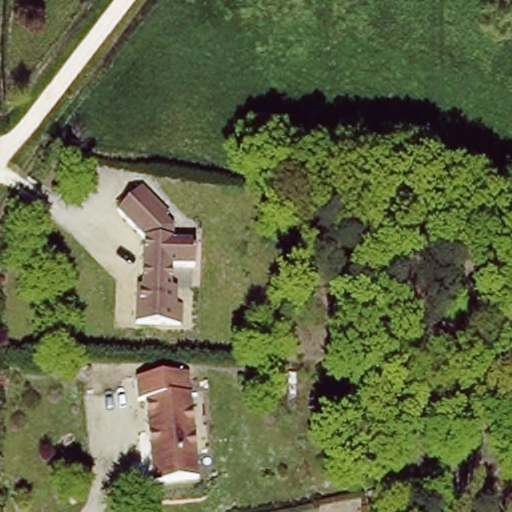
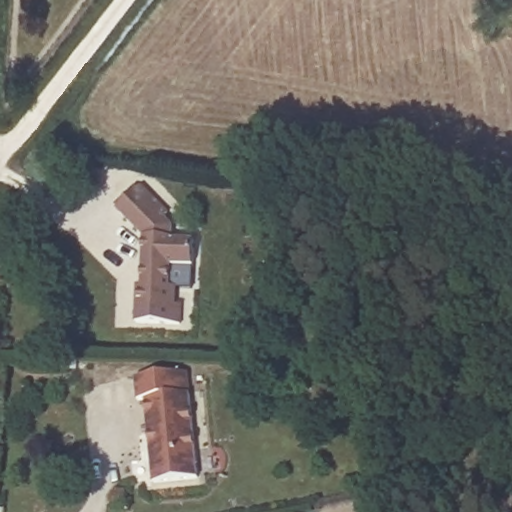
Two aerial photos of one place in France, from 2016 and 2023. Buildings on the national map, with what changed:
unchanged [(185,321),(177,321),(137,320),(138,280),(145,280),(146,231),(119,205),(145,179),(175,208),(168,215),(175,221),(174,235),(192,235),(192,262),(174,262),(173,287),(178,287),(177,299),(186,299),(185,321)]
unchanged [(190,373),(192,393),(200,475),(155,477),(148,398),(144,400),(143,377),(190,373)]

